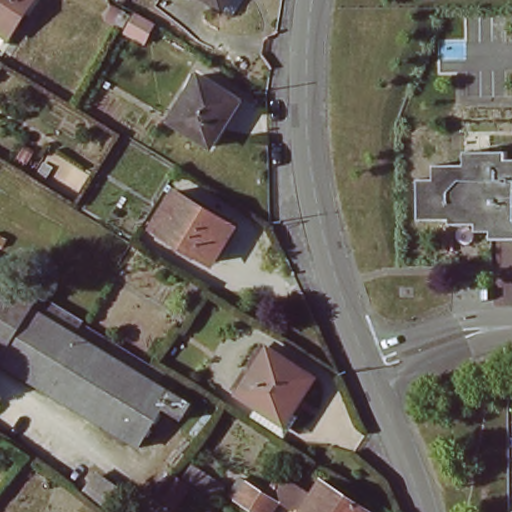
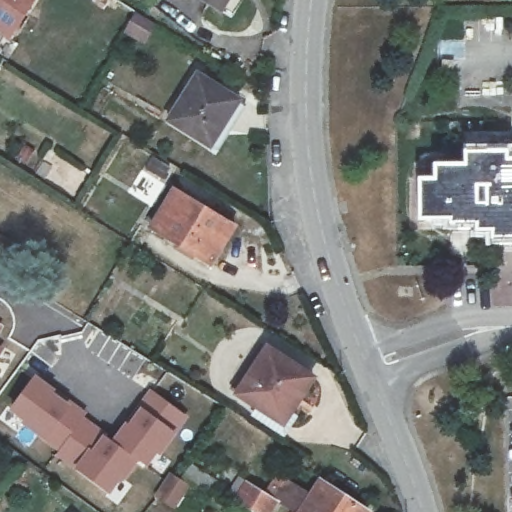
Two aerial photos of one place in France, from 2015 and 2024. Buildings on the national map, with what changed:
unchanged [(10,35),(0,29),(0,0),(32,0),(10,35)]
unchanged [(220,9),(205,0),(225,0),(220,9)]
unchanged [(226,130),(215,148),(172,121),(201,75),(238,96),(244,100),(226,130)]
unchanged [(496,240),(496,234),(481,234),(481,226),(455,228),(455,224),(422,225),(422,184),(435,184),(435,168),(467,167),(466,155),(506,154),(506,161),(512,161),(512,240),(500,240),(496,240)]
unchanged [(236,225),(215,260),(155,224),(177,188),(236,225)]
demolished [(39,292),(31,304),(185,400),(175,416),(156,405),(132,445),(0,363),(0,268),(39,292)]
new [(3,326),(0,332),(0,324),(3,326)]
unchanged [(283,431),(251,411),(257,402),(236,389),(265,343),(311,372),(290,406),(297,410),(283,431)]
new [(5,347),(0,355),(0,344),(5,347)]
new [(56,389),(53,391),(68,403),(72,400),(89,413),(86,417),(113,437),(125,422),(149,390),(187,418),(175,433),(160,457),(157,455),(146,467),(139,461),(122,482),(118,480),(108,495),(75,470),(56,455),(58,452),(43,440),(21,424),(23,420),(7,408),(36,375),(56,389)]
unchanged [(512,401),(512,512),(511,512),(507,400),(512,401)]
unchanged [(198,478),(207,462),(236,480),(228,495),(198,478)]
unchanged [(285,496),(276,511),(241,490),(249,475),(285,496)]
unchanged [(371,512),(306,512),(328,475),(375,503),(371,512)]

